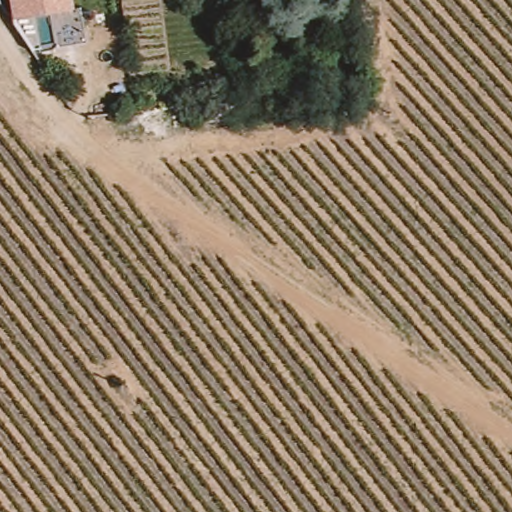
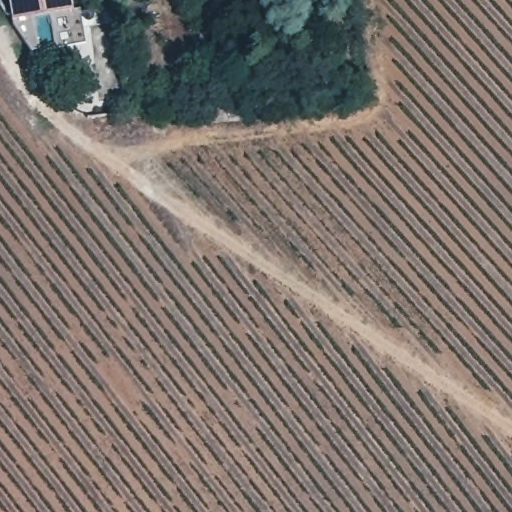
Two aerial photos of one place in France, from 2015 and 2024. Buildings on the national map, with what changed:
unchanged [(72,0),(73,4),(13,15),(13,14),(11,0),(72,0)]

